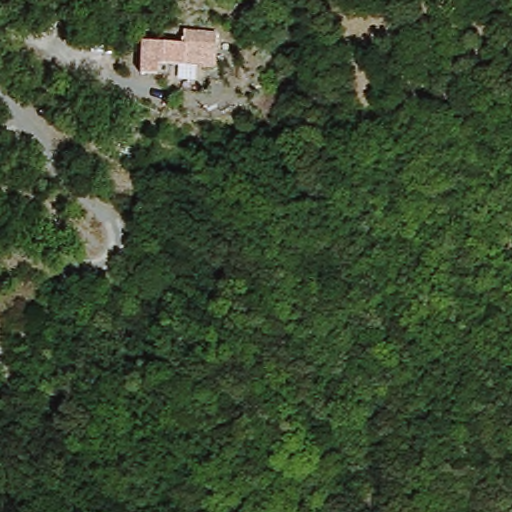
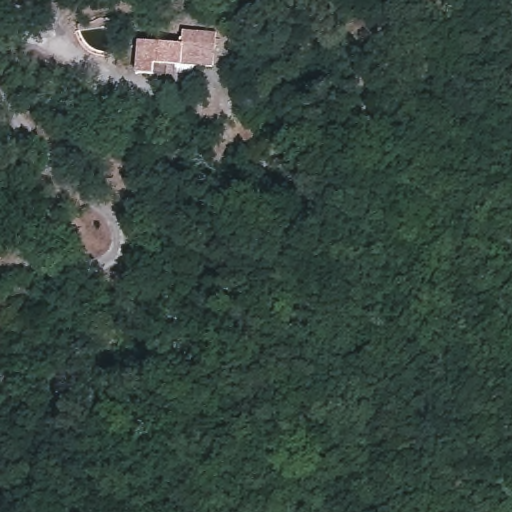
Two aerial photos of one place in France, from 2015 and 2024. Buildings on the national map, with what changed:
unchanged [(214,72),(205,71),(157,62),(155,74),(139,71),(145,39),(186,46),(188,32),(220,37),(214,72)]

